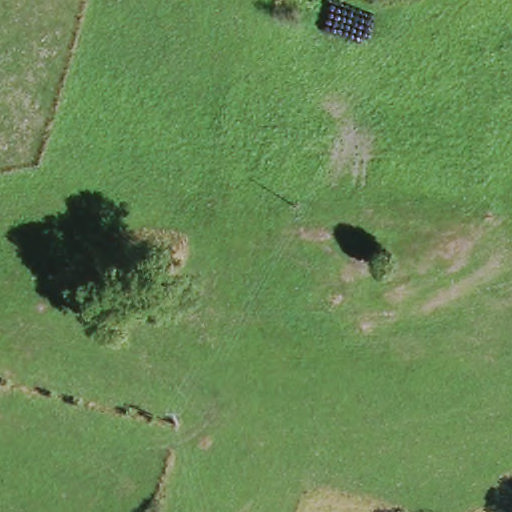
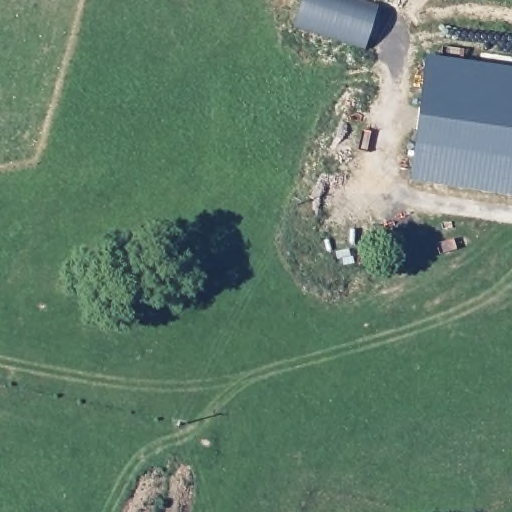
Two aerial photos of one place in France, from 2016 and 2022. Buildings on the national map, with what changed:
new [(512,68),(512,196),(410,181),(425,56),(512,68)]

